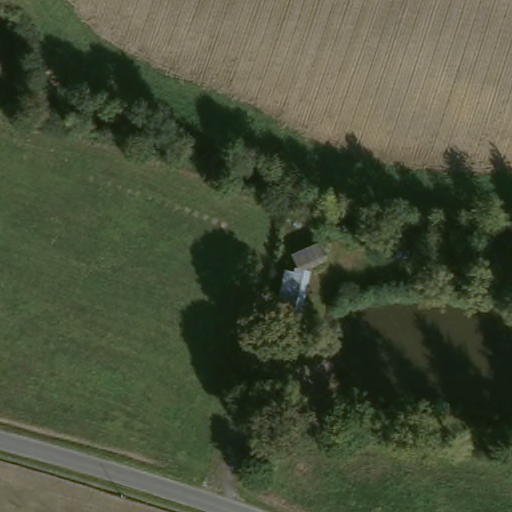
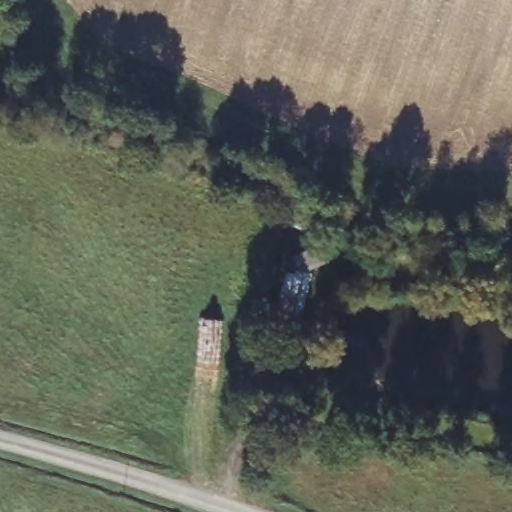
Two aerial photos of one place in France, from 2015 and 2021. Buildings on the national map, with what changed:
unchanged [(287,272),(299,271),(295,253),(323,240),(330,259),(315,268),(299,328),(275,320),(287,272)]

